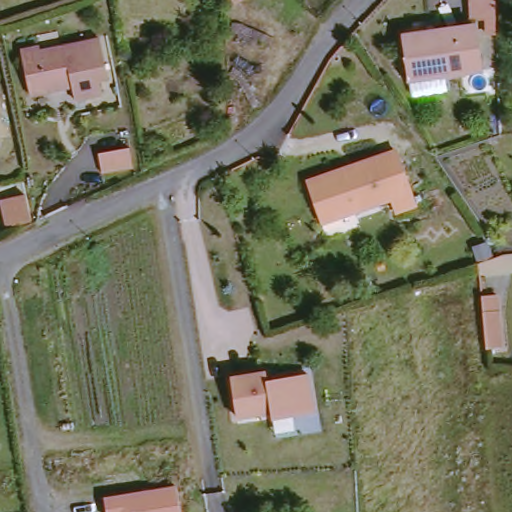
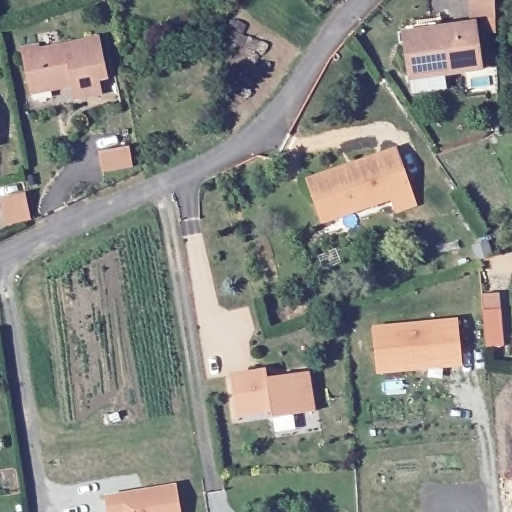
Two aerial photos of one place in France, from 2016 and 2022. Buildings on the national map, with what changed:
unchanged [(349,0),(357,0),(351,5),(349,0)]
unchanged [(499,20),(479,21),(478,0),(498,0),(499,20)]
unchanged [(419,100),(415,74),(412,40),(447,36),(447,32),(483,27),(487,70),(451,75),(452,97),(419,100)]
unchanged [(119,84),(109,86),(111,99),(83,105),(80,92),(41,100),(31,48),(47,45),(49,50),(107,36),(119,84)]
unchanged [(389,158),(405,154),(422,206),(406,210),(399,212),(394,199),(361,211),(360,207),(352,210),(340,171),(389,156),(389,158)]
unchanged [(135,175),(103,181),(99,162),(131,155),(135,175)]
unchanged [(352,210),(324,219),(312,179),(340,171),(352,210)]
unchanged [(30,229),(5,233),(0,211),(0,209),(25,204),(30,229)]
unchanged [(496,302),(500,355),(485,356),(482,303),(496,302)]
new [(374,327),(458,319),(462,367),(377,376),(374,327)]
unchanged [(272,375),(312,369),(317,408),(275,413),(275,407),(240,412),(235,372),(272,368),(272,375)]
unchanged [(179,512),(104,512),(103,506),(117,504),(176,495),(179,512)]

